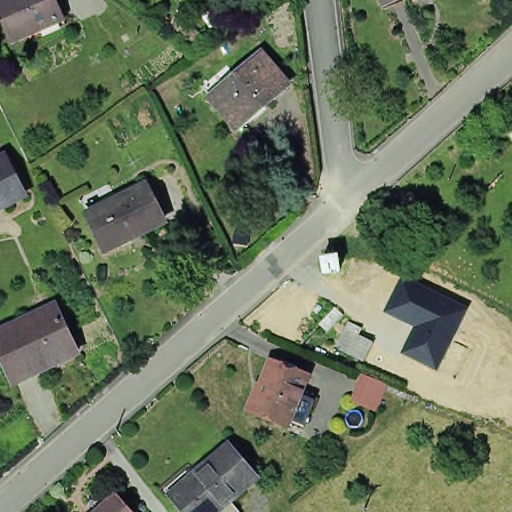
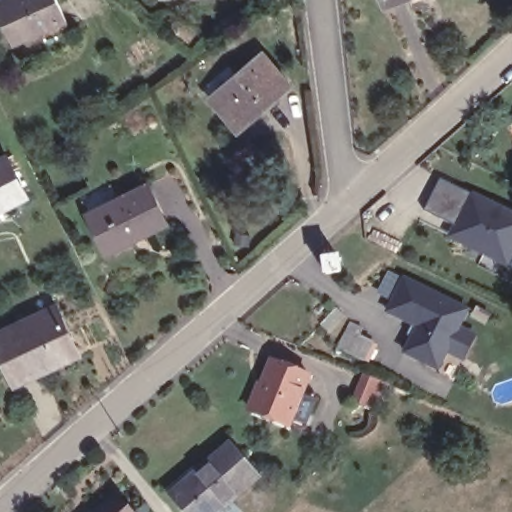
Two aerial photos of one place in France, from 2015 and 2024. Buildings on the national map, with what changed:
unchanged [(19,40),(2,0),(62,0),(70,19),(19,40)]
unchanged [(295,85),(243,125),(216,94),(209,86),(234,64),(243,73),(269,52),(295,85)]
unchanged [(30,192),(0,208),(0,161),(11,155),(30,192)]
unchanged [(148,180),(165,215),(108,244),(90,207),(148,180)]
new [(439,184),(512,219),(512,259),(507,269),(462,247),(467,237),(424,216),(439,184)]
unchanged [(402,353),(414,328),(385,313),(403,277),(469,309),(439,372),(402,353)]
unchanged [(78,341),(35,362),(37,366),(16,375),(0,339),(0,326),(58,298),(78,341)]
unchanged [(367,364),(352,357),(341,352),(353,327),(364,333),(361,340),(375,345),(367,364)]
unchanged [(309,373),(303,390),(290,422),(289,425),(250,410),(261,382),(270,358),(283,363),(309,373)]
unchanged [(376,412),(351,403),(362,375),(388,385),(376,412)]
unchanged [(261,475),(233,498),(218,512),(187,512),(171,493),(232,441),(261,475)]
unchanged [(95,510),(118,490),(126,499),(138,512),(97,512),(95,510)]

